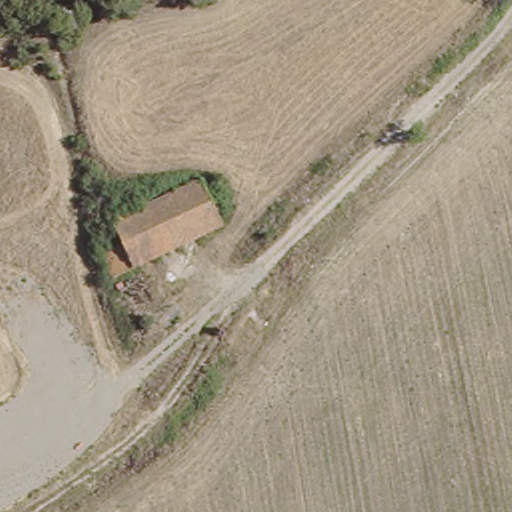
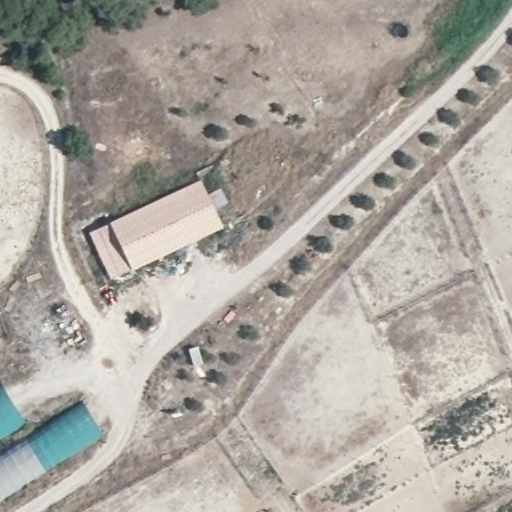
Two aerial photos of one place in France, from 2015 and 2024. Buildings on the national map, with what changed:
unchanged [(100,252),(121,242),(113,224),(201,181),(222,227),(113,278),(100,252)]
new [(25,421),(0,437),(0,382),(25,421)]
new [(102,433),(0,498),(0,453),(82,401),(102,433)]

